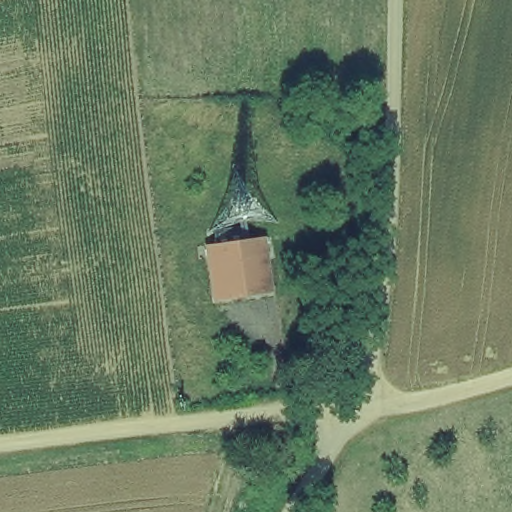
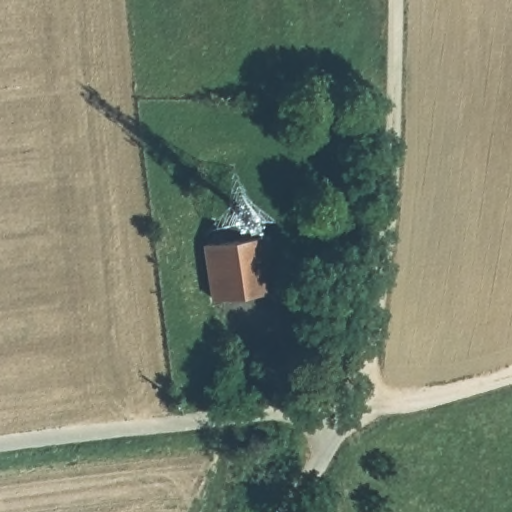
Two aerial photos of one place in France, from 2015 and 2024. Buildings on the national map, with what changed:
unchanged [(207,244),(271,236),(277,293),(215,300),(207,244)]

